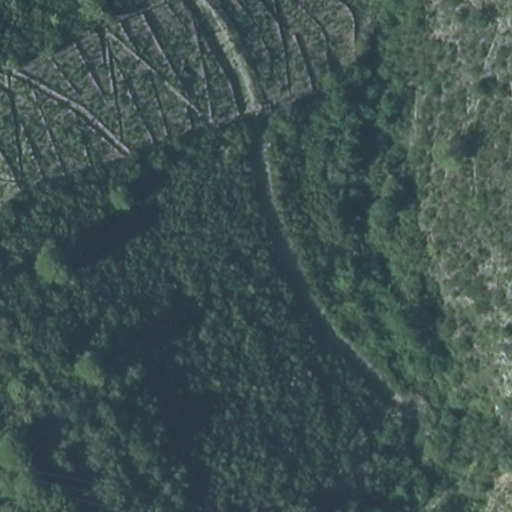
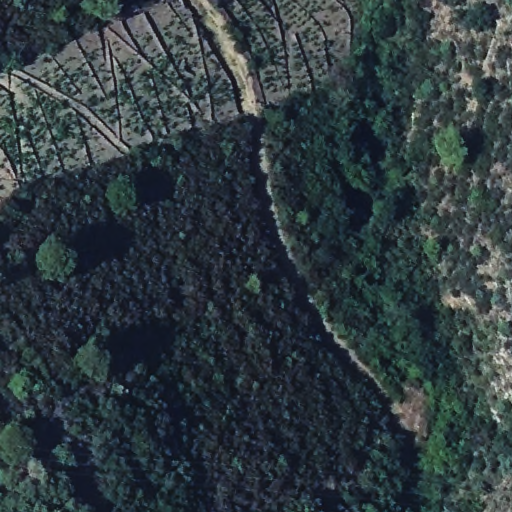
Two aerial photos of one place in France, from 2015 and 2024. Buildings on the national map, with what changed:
unchanged [(465,49),(450,59),(435,33),(460,29),(465,49)]

